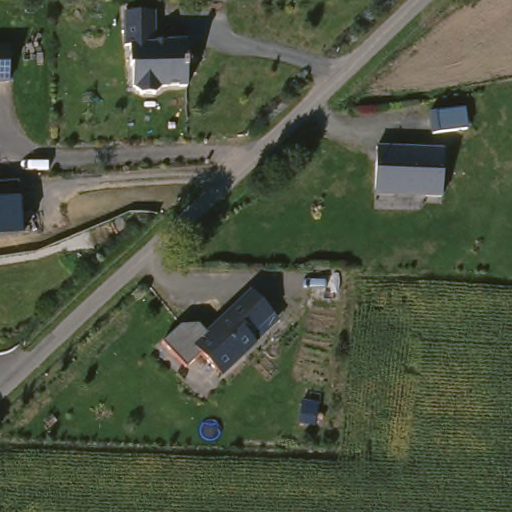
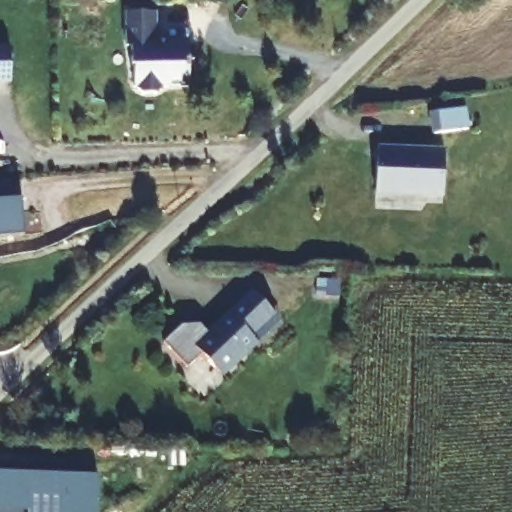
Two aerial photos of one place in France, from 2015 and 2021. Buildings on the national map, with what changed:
unchanged [(156,12),(156,42),(168,42),(168,40),(189,41),(188,95),(161,94),(161,97),(155,102),(140,101),(135,94),(133,95),(133,74),(130,74),(130,52),(125,52),(126,11),(156,12)]
unchanged [(11,82),(0,82),(0,48),(11,47),(11,82)]
unchanged [(470,129),(435,132),(431,112),(465,108),(470,129)]
unchanged [(376,144),(424,148),(424,146),(446,148),(444,195),(374,187),(376,144)]
unchanged [(25,234),(0,235),(0,183),(20,181),(21,197),(25,234)]
unchanged [(177,327),(196,325),(205,329),(244,285),(275,313),(251,338),(255,342),(226,371),(198,352),(185,363),(161,342),(177,327)]
new [(0,474),(97,478),(96,512),(0,512),(0,474)]

